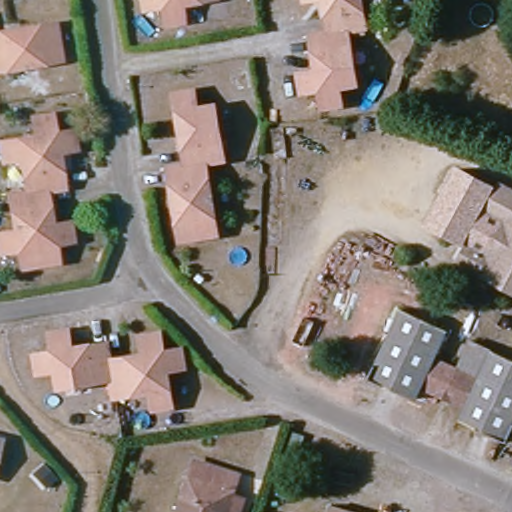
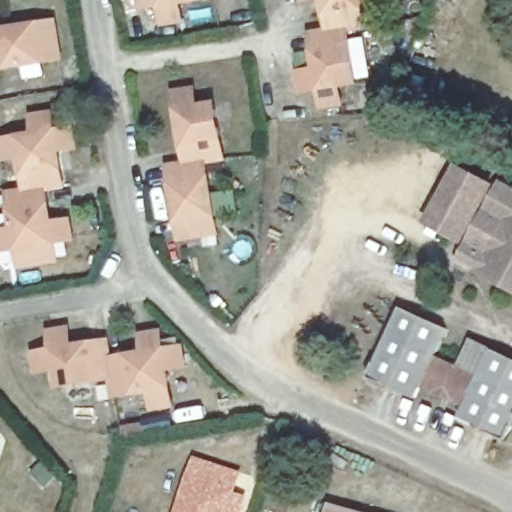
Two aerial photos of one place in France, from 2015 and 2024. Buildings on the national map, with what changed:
unchanged [(179,2),(181,20),(165,22),(162,7),(146,9),(145,0),(194,0),(179,2)]
unchanged [(363,30),(346,33),(356,87),(336,91),(339,108),(320,110),(317,95),(303,97),(298,77),(315,75),(310,39),(326,36),(320,0),(359,0),(363,30)]
unchanged [(62,63),(0,72),(0,31),(57,22),(62,63)]
unchanged [(175,90),(195,86),(199,105),(215,102),(220,132),(181,120),(175,90)]
unchanged [(74,127),(75,147),(60,150),(64,182),(48,185),(52,220),(68,217),(71,237),(56,239),(56,254),(22,258),(20,246),(2,249),(0,232),(0,228),(16,227),(11,190),(27,189),(22,155),(6,157),(4,140),(37,132),(35,115),(52,112),(55,130),(74,127)]
unchanged [(220,132),(224,156),(206,159),(217,229),(182,235),(171,165),(189,162),(181,120),(220,132)]
unchanged [(493,187),(479,217),(494,225),(481,254),(465,246),(422,225),(454,165),(493,187)]
unchanged [(456,267),(465,246),(481,254),(494,225),(479,217),(493,187),(512,196),(512,292),(456,267)]
unchanged [(425,384),(417,402),(370,382),(401,309),(448,331),(436,358),(459,368),(447,393),(425,384)]
unchanged [(67,343),(105,339),(108,353),(134,348),(134,333),(151,331),(152,345),(169,343),(170,357),(190,355),(194,373),(174,376),(180,413),(164,416),(161,398),(125,402),(122,386),(86,389),(85,373),(54,377),(52,366),(40,367),(34,368),(31,350),(46,348),(45,335),(52,333),(66,331),(67,343)]
unchanged [(459,368),(482,378),(494,351),(512,359),(512,425),(505,441),(463,421),(471,404),(447,393),(459,368)]
unchanged [(321,375),(303,368),(306,357),(325,362),(321,375)]
unchanged [(0,441),(0,438),(1,438),(0,441)]
unchanged [(227,512),(178,512),(198,453),(241,466),(227,512)]

